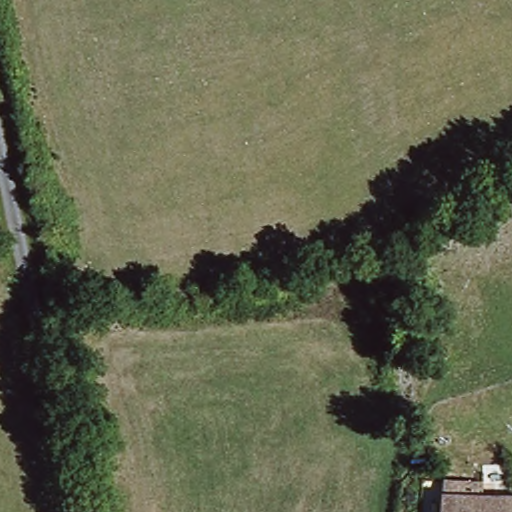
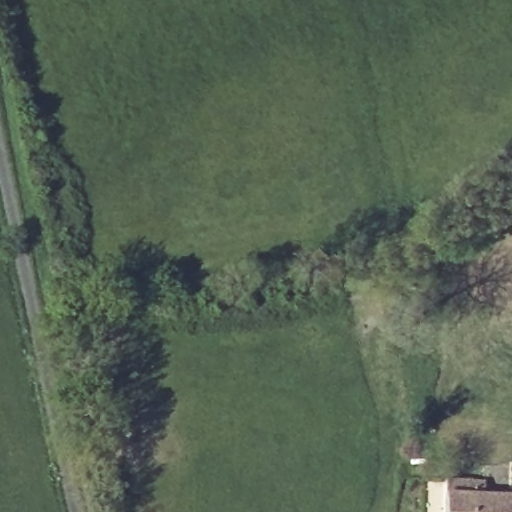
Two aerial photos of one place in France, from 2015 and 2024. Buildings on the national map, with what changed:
unchanged [(491,481),(490,493),(512,494),(512,512),(451,512),(455,478),(491,481)]

